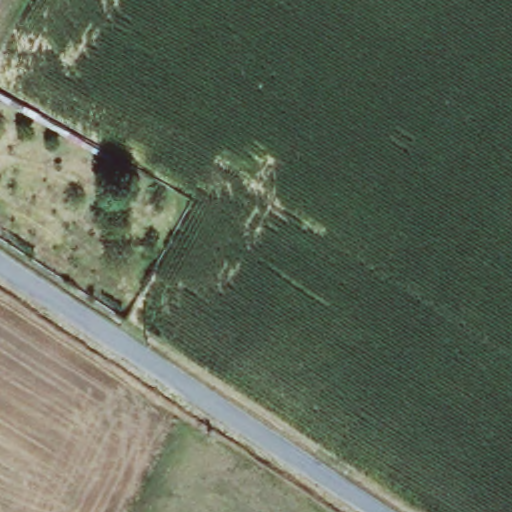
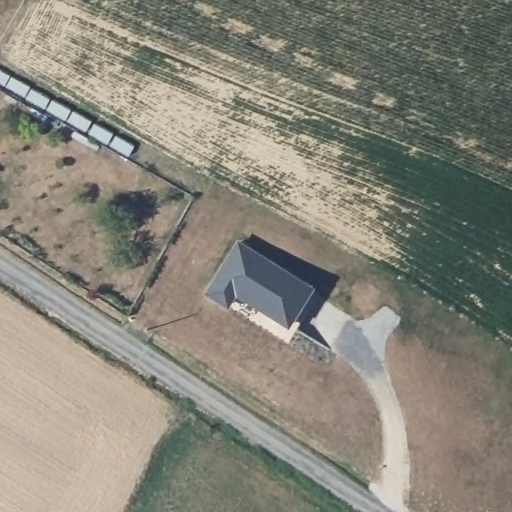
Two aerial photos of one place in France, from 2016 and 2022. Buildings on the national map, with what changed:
new [(239,245),(312,290),(289,326),(237,294),(228,306),(209,294),(239,245)]

